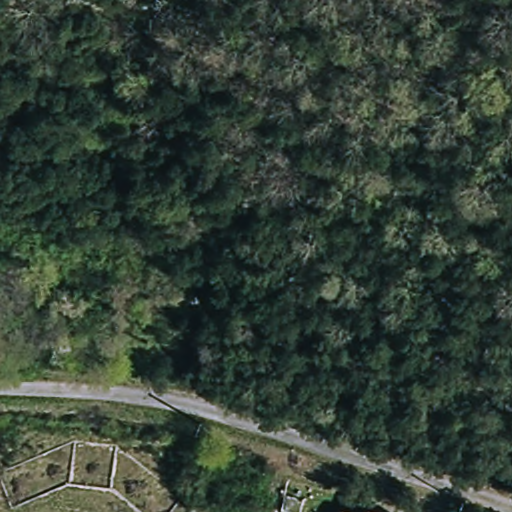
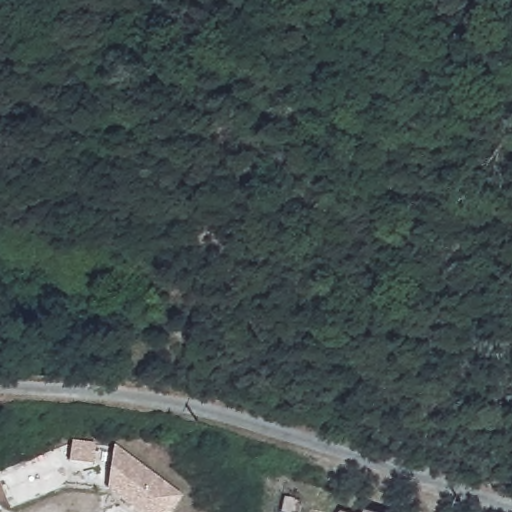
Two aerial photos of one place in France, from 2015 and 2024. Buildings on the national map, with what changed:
new [(172,512),(137,512),(108,490),(115,445),(183,498),(172,512)]

